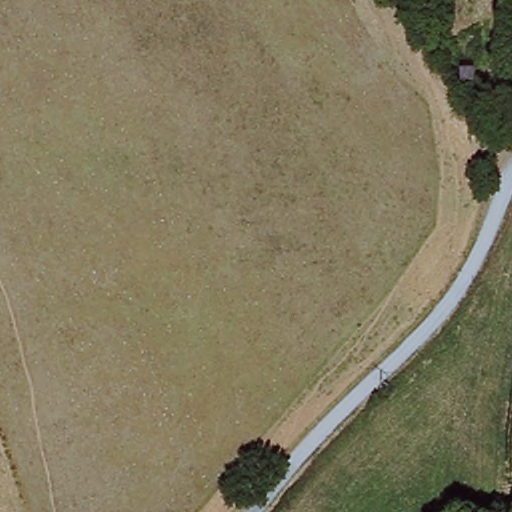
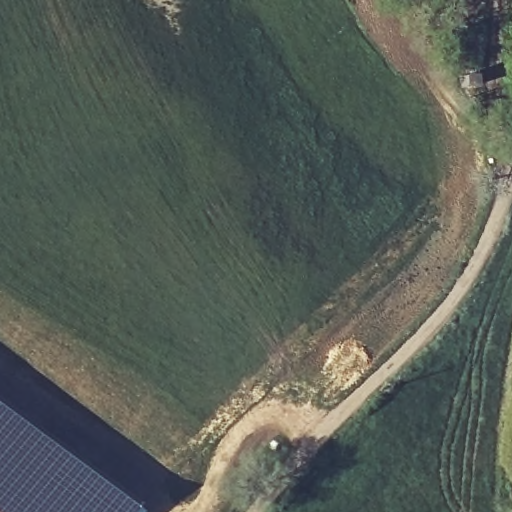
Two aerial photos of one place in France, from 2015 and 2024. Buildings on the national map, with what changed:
new [(132,508),(130,512),(0,512),(0,409),(132,508)]

